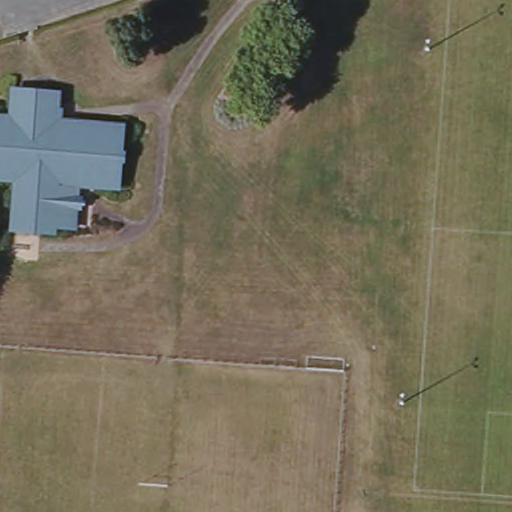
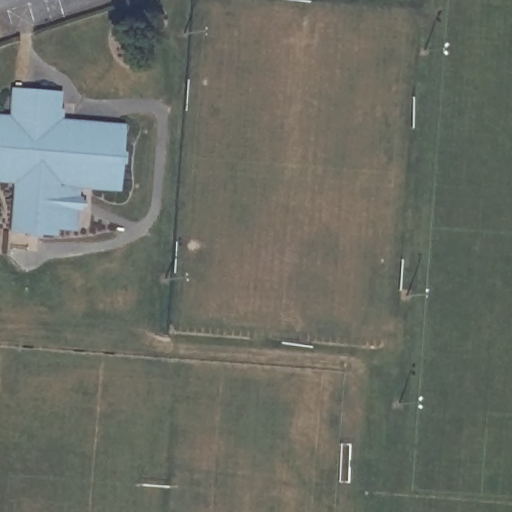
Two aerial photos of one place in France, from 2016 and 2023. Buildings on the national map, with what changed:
unchanged [(76,187),(74,231),(53,230),(52,236),(11,232),(15,183),(0,181),(0,120),(10,121),(13,87),(59,91),(56,125),(123,129),(118,191),(76,187)]

